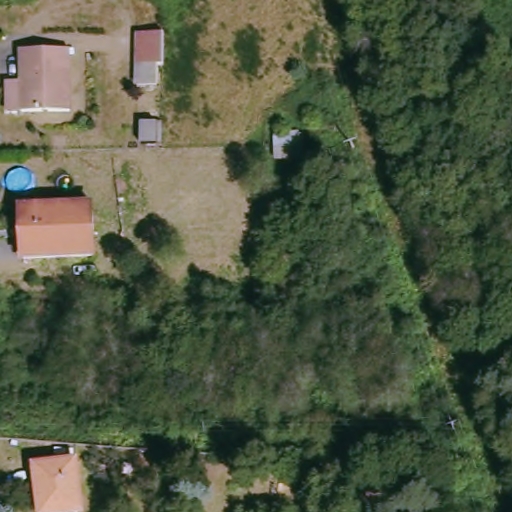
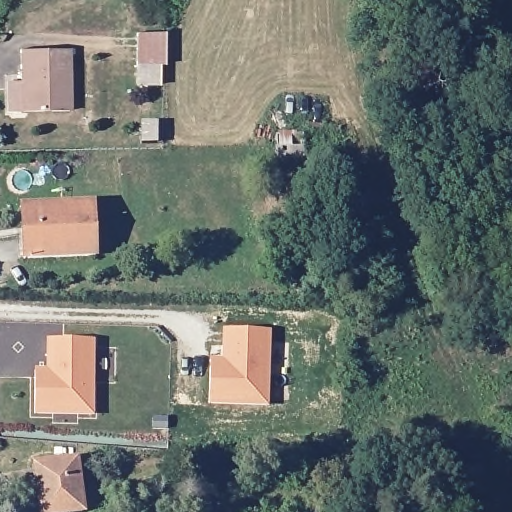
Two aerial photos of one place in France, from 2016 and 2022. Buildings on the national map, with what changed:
unchanged [(161,30),(161,64),(135,65),(136,31),(161,30)]
unchanged [(68,112),(21,115),(19,54),(66,51),(68,112)]
unchanged [(153,136),(136,135),(136,116),(153,116),(153,136)]
unchanged [(273,157),(273,145),(273,132),(304,132),(304,145),(304,157),(273,157)]
unchanged [(100,260),(29,263),(25,213),(98,208),(100,260)]
new [(272,328),(269,403),(211,401),(213,366),(213,358),(226,359),(228,327),(272,328)]
new [(89,416),(31,414),(33,378),(33,371),(46,371),(46,379),(48,339),(91,341),(89,416)]
unchanged [(41,512),(38,487),(34,481),(33,464),(73,458),(81,512),(41,512)]

